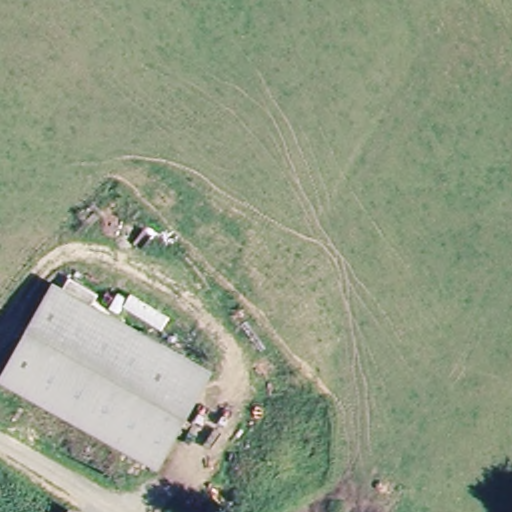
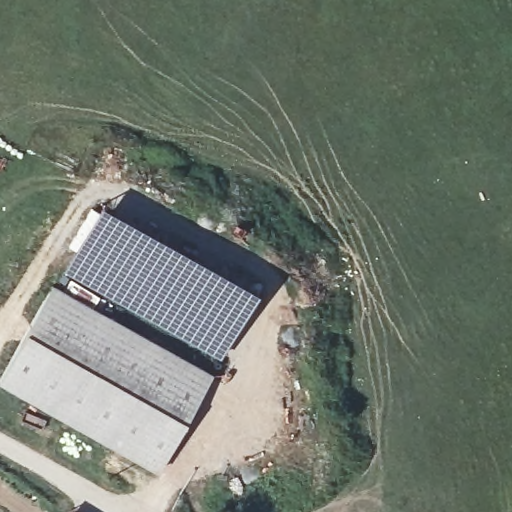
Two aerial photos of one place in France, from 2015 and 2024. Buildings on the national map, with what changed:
new [(258,290),(219,357),(62,270),(100,203),(258,290)]
unchanged [(157,469),(0,378),(54,284),(212,375),(157,469)]

